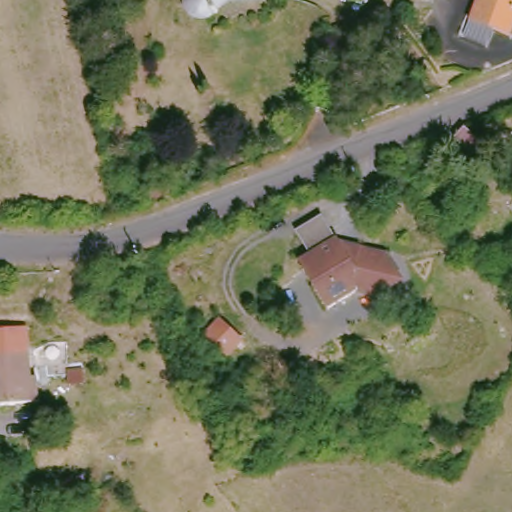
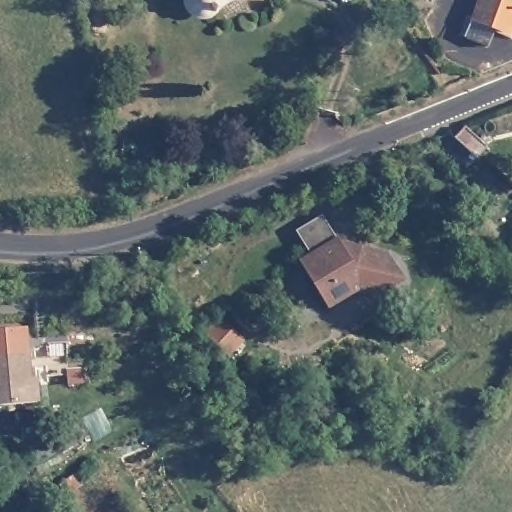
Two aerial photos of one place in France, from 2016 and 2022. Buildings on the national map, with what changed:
unchanged [(230,6),(217,13),(209,12),(200,5),(197,0),(232,0),(230,6)]
unchanged [(493,50),(461,39),(467,20),(475,22),(482,0),(512,0),(512,35),(500,31),(493,50)]
unchanged [(461,141),(472,130),(492,149),(481,160),(461,141)]
unchanged [(139,191),(169,181),(172,198),(142,210),(139,191)]
unchanged [(334,307),(303,261),(343,235),(348,241),(353,239),(389,247),(392,250),(405,266),(399,285),(386,292),(379,291),(362,288),(334,307)]
unchanged [(0,408),(0,355),(28,351),(35,403),(0,408)]

